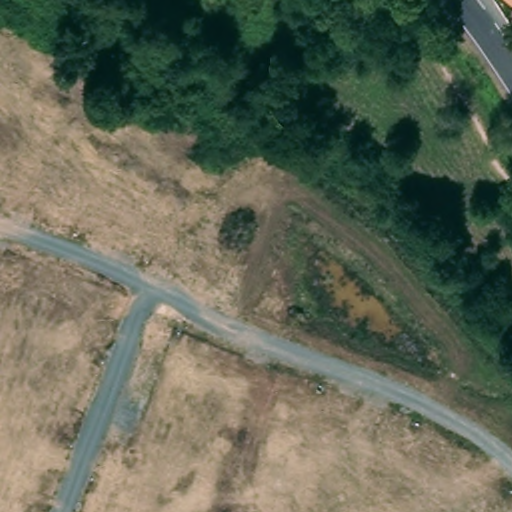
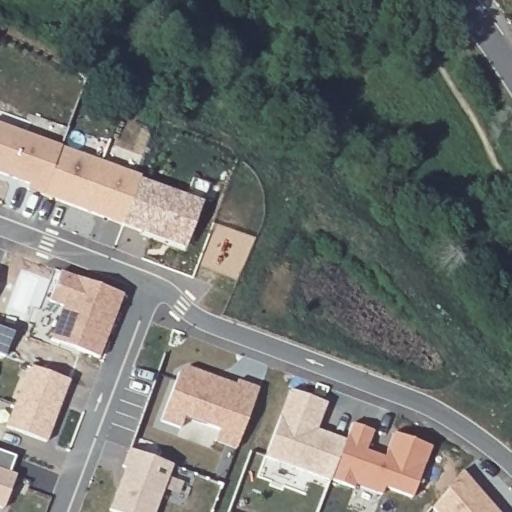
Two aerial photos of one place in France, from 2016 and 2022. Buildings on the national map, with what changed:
unchanged [(511,0),(512,0),(512,1),(511,0)]
new [(51,198),(35,192),(37,188),(0,173),(0,124),(70,151),(51,198)]
new [(140,177),(121,226),(51,198),(70,151),(140,177)]
new [(69,274),(132,298),(107,361),(60,343),(72,310),(58,304),(69,274)]
new [(0,293),(0,275),(6,277),(0,293)]
new [(5,358),(0,356),(0,329),(14,334),(5,358)]
new [(70,382),(46,443),(6,427),(27,368),(70,382)]
new [(215,443),(219,431),(184,419),(181,429),(161,422),(179,373),(189,368),(235,385),(236,381),(257,389),(236,449),(215,443)]
new [(326,404),(316,431),(322,433),(345,442),(331,481),(330,482),(265,457),(290,391),(326,404)]
new [(345,442),(352,424),(373,433),(366,452),(384,458),(393,434),(431,448),(412,499),(385,489),(382,496),(355,486),(354,490),(331,481),(345,442)]
new [(156,512),(112,512),(110,511),(125,468),(122,467),(128,449),(172,466),(156,512)]
new [(10,474),(16,476),(4,510),(0,508),(0,452),(15,458),(10,474)]
new [(498,512),(436,512),(433,508),(463,471),(498,512)]

